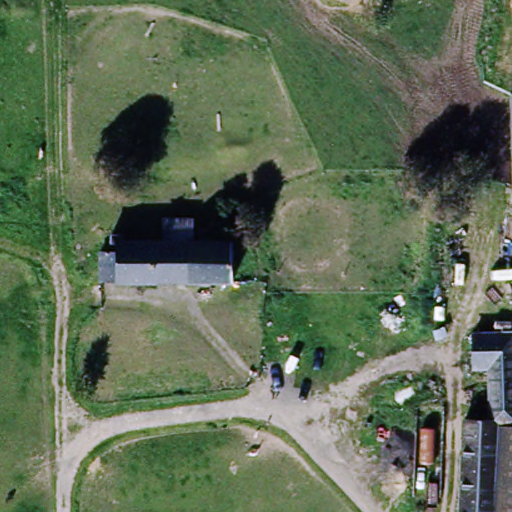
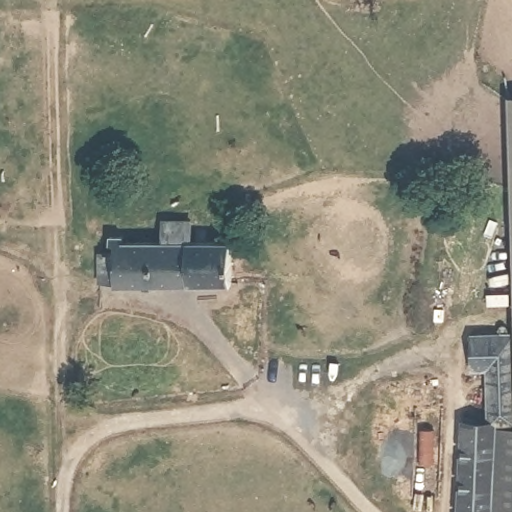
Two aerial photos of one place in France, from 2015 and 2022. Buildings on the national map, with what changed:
unchanged [(512,97),(512,253),(508,97),(512,97)]
unchanged [(102,251),(102,245),(98,245),(98,236),(110,235),(110,242),(153,242),(153,221),(174,220),(176,240),(222,242),(225,287),(104,288),(104,285),(91,286),(88,253),(102,251)]
unchanged [(470,368),(470,329),(512,330),(512,432),(488,431),(482,429),(481,368),(470,368)]
unchanged [(489,512),(460,512),(461,430),(482,429),(488,431),(489,512)]
unchanged [(512,432),(512,512),(489,512),(488,431),(512,432)]

